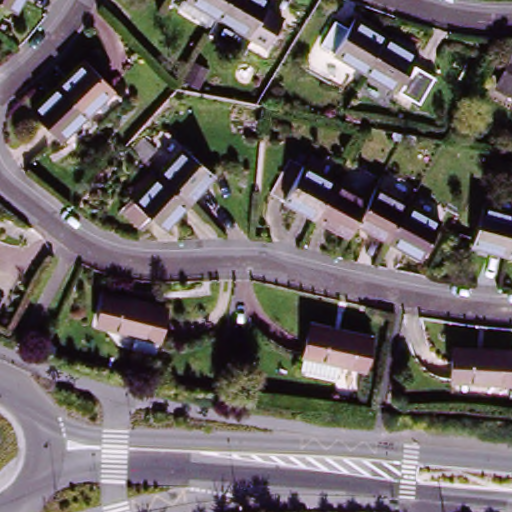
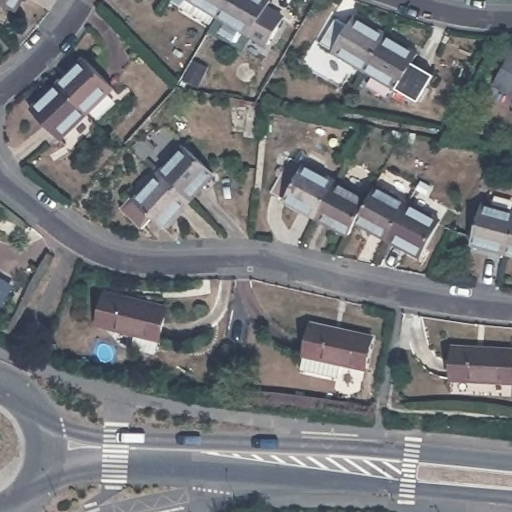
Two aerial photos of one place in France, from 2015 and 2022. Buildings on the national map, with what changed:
unchanged [(15,12),(0,3),(0,0),(23,0),(15,12)]
unchanged [(217,14),(215,12),(210,21),(180,3),(176,0),(226,0),(217,14)]
unchanged [(226,0),(268,0),(265,5),(282,15),(267,40),(250,30),(249,32),(217,14),(226,0)]
unchanged [(371,48),(360,66),(316,40),(330,16),(343,24),(349,14),(380,32),(371,48)]
unchanged [(412,50),(406,60),(419,68),(405,92),(360,66),(371,48),(380,32),(412,50)]
unchanged [(496,82),(512,53),(512,91),(496,82)]
unchanged [(85,60),(112,89),(85,115),(57,86),(85,60)]
unchanged [(192,63),(207,70),(205,74),(198,89),(184,82),(189,71),(190,67),(192,63)]
unchanged [(59,140),(31,111),(57,86),(85,115),(59,140)]
unchanged [(415,136),(413,145),(404,144),(406,134),(415,136)]
unchanged [(156,150),(145,162),(130,147),(142,135),(156,150)]
unchanged [(184,148),(212,175),(186,204),(157,177),(184,148)]
unchanged [(271,195),(290,159),(295,161),(299,154),(308,159),(310,155),(324,162),(317,174),(335,184),(316,219),(271,195)]
unchanged [(163,229),(155,222),(146,232),(124,213),(157,177),(186,204),(163,229)]
unchanged [(356,223),(349,237),(316,219),(335,184),(368,201),(356,223)]
unchanged [(402,215),(388,240),(356,223),(368,201),(375,187),(407,205),(402,215)]
unchanged [(440,223),(421,258),(388,240),(402,215),(407,205),(440,223)]
unchanged [(507,255),(473,245),(484,205),(512,213),(512,235),(507,255)]
unchanged [(507,255),(512,235),(512,256),(507,255)]
unchanged [(166,303),(159,336),(155,352),(131,347),(135,331),(99,322),(107,290),(166,303)]
unchanged [(311,320),(372,333),(365,365),(340,360),(336,373),(301,365),(304,351),(311,320)]
unchanged [(512,351),(512,384),(451,380),(453,348),(512,351)]

